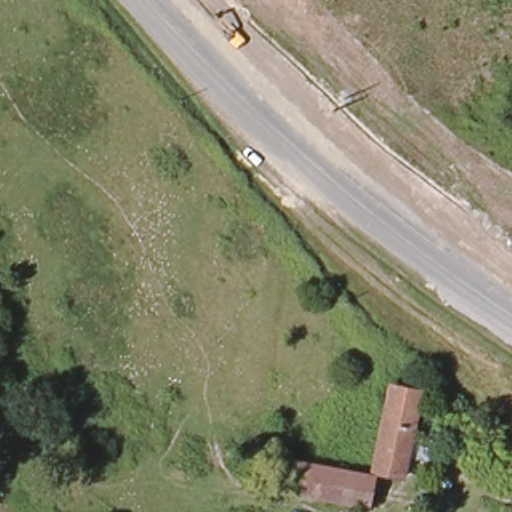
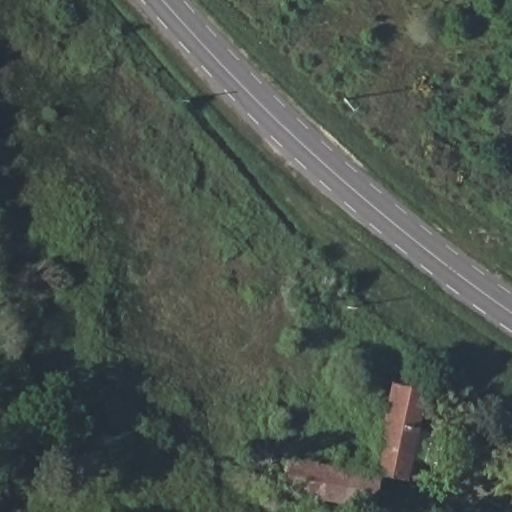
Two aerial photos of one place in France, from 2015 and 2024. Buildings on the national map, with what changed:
unchanged [(423,393),(411,476),(378,474),(392,388),(423,393)]
unchanged [(276,489),(278,458),(378,474),(373,510),(276,489)]

